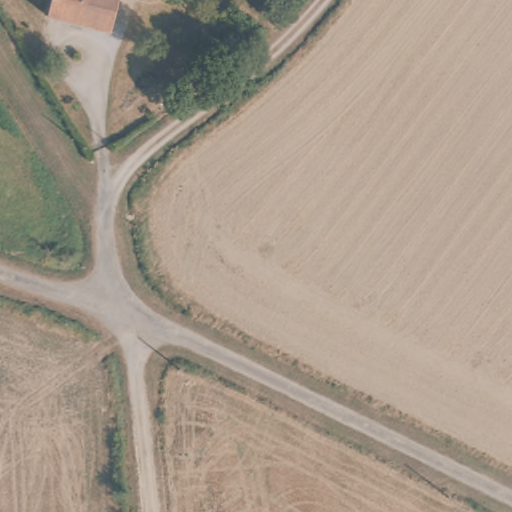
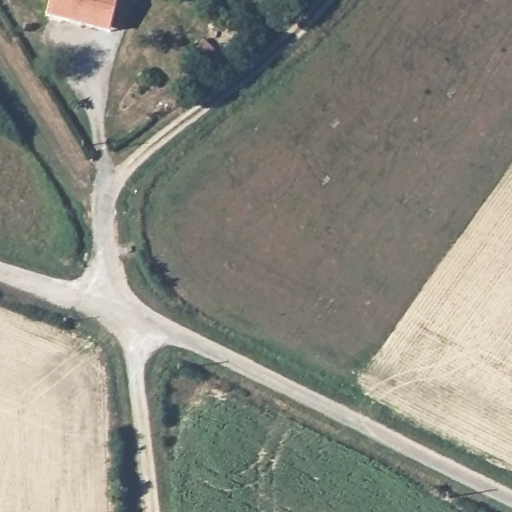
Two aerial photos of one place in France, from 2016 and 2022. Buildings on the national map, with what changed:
unchanged [(47,22),(48,0),(113,0),(112,27),(47,22)]

